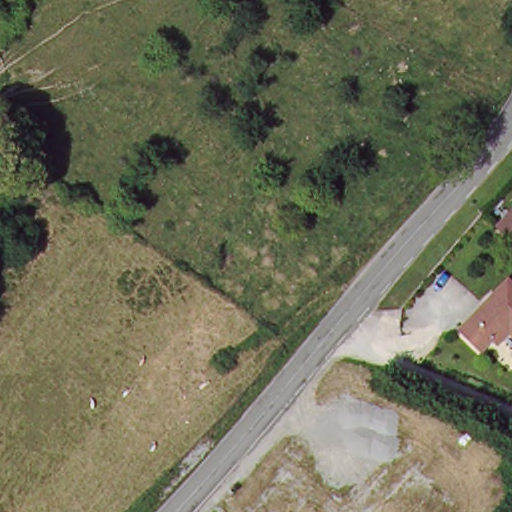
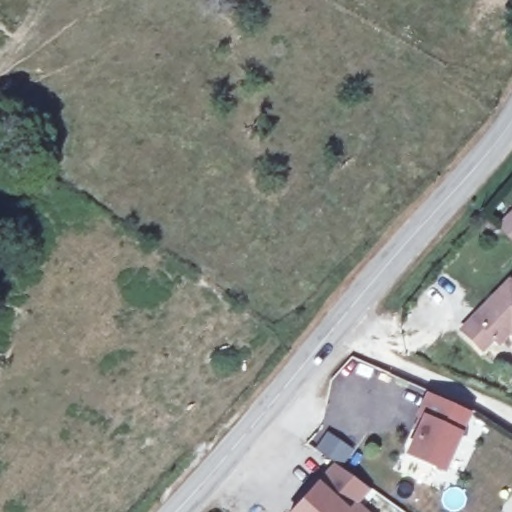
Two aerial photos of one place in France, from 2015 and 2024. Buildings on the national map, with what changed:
unchanged [(497,235),(512,219),(512,248),(507,245),(497,235)]
unchanged [(512,327),(505,321),(483,344),(463,326),(506,277),(512,282),(512,327)]
new [(461,432),(443,472),(404,454),(415,428),(409,427),(423,392),(470,413),(461,432)]
new [(331,463),(370,489),(358,503),(368,512),(288,512),(317,480),(331,463)]

